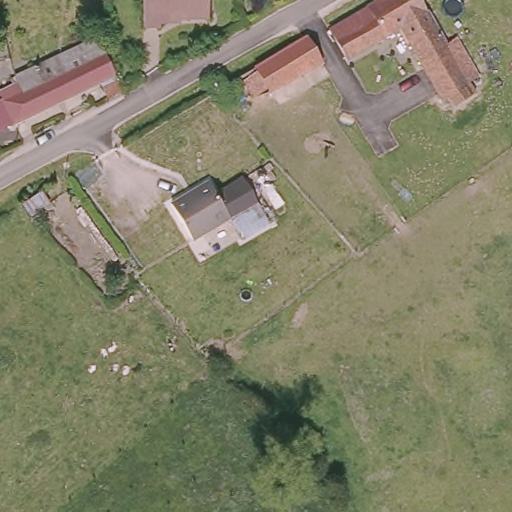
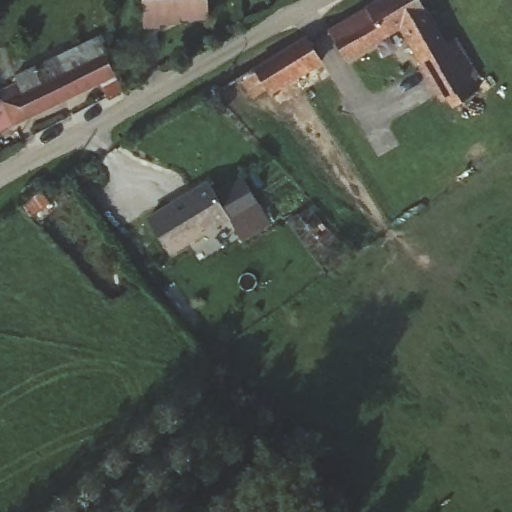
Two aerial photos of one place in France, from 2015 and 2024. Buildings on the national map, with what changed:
unchanged [(142,33),(142,0),(207,0),(207,22),(160,23),(160,33),(142,33)]
unchanged [(460,75),(465,82),(453,90),(470,114),(454,126),(445,98),(440,101),(396,28),(346,61),(325,30),(372,0),(407,0),(460,75)]
unchanged [(302,34),(318,61),(272,91),(255,64),(302,34)]
unchanged [(108,96),(101,84),(17,124),(7,99),(8,98),(1,83),(37,66),(97,39),(105,54),(118,76),(125,87),(108,96)]
unchanged [(191,242),(169,201),(206,179),(215,194),(242,177),(258,204),(191,242)]

